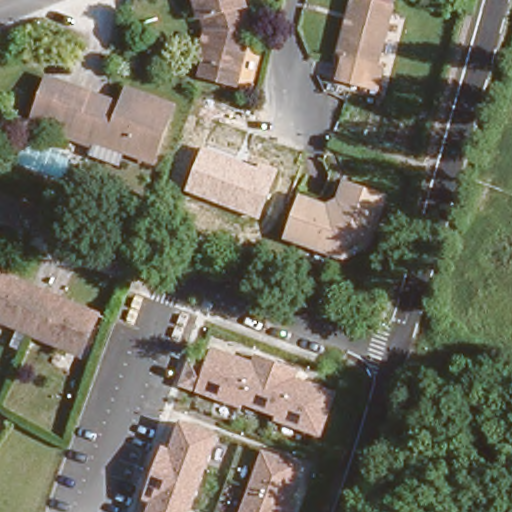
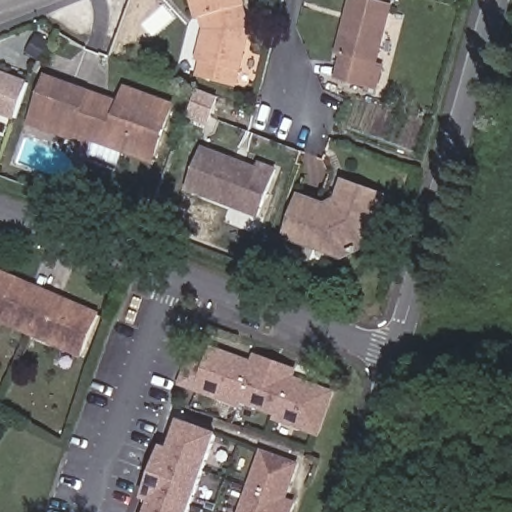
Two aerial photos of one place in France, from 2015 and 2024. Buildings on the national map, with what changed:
unchanged [(206,28),(203,17),(197,18),(192,0),(244,0),(251,30),(235,84),(200,73),(204,60),(197,58),(206,28)]
unchanged [(374,52),(380,54),(373,78),(334,67),(341,43),(333,41),(345,0),(389,0),(374,52)]
unchanged [(32,118),(49,73),(70,80),(54,125),(32,118)]
new [(27,86),(14,120),(0,115),(0,76),(27,86)]
unchanged [(54,125),(70,80),(75,82),(90,86),(75,132),(58,127),(54,125)]
unchanged [(108,92),(107,98),(119,103),(127,82),(173,97),(154,150),(97,130),(94,138),(75,132),(90,86),(108,92)]
unchanged [(261,218),(187,191),(203,146),(260,167),(262,162),(280,169),(261,218)]
unchanged [(379,192),(365,242),(339,256),(282,241),(294,200),(319,208),(334,200),(339,182),(379,192)]
unchanged [(77,348),(0,312),(0,269),(14,275),(43,289),(74,304),(93,313),(77,348)]
unchanged [(188,357),(207,366),(214,345),(253,360),(256,352),(300,369),(298,377),(338,391),(322,438),(275,421),(277,414),(245,403),(243,409),(179,386),(188,357)]
unchanged [(142,499),(163,445),(172,448),(183,419),(222,432),(193,512),(148,512),(152,503),(142,499)]
unchanged [(291,498),(300,501),(296,512),(239,512),(262,449),(303,462),(291,498)]

